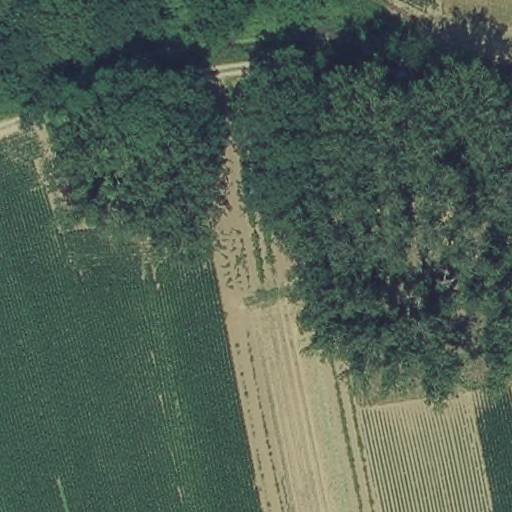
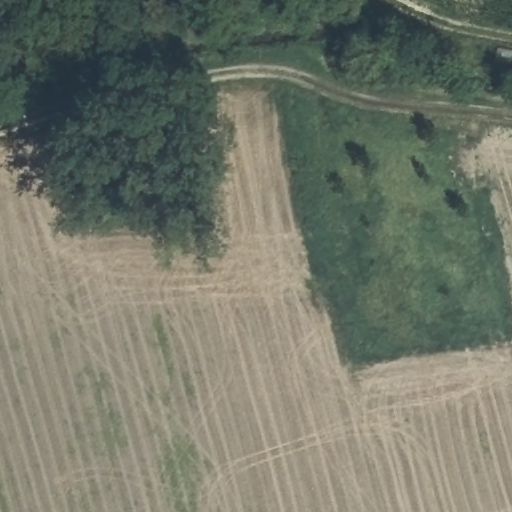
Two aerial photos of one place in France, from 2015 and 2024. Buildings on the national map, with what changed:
unchanged [(8,55),(0,59),(0,38),(8,55)]

